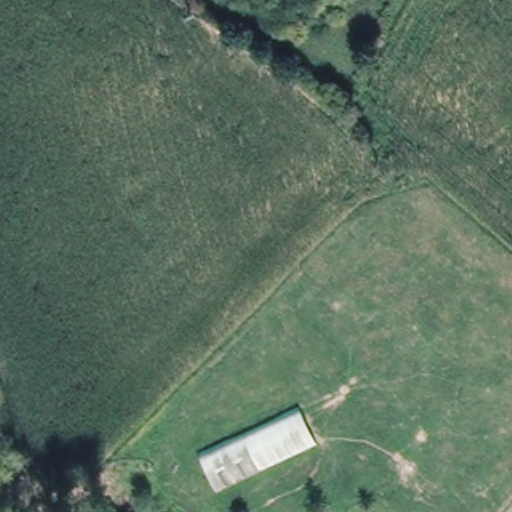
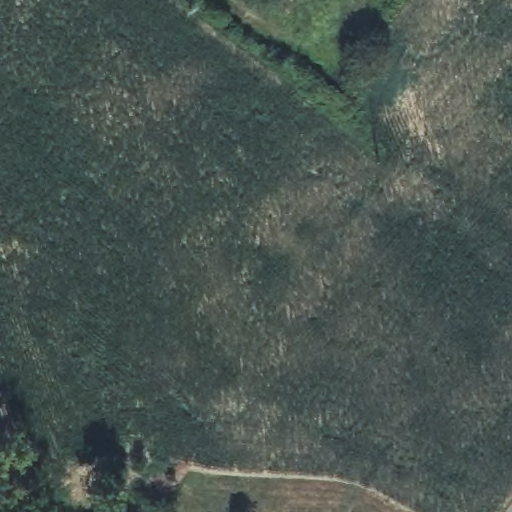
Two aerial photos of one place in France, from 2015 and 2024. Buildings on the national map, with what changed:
demolished [(194,454),(295,406),(315,440),(211,489),(194,454)]

